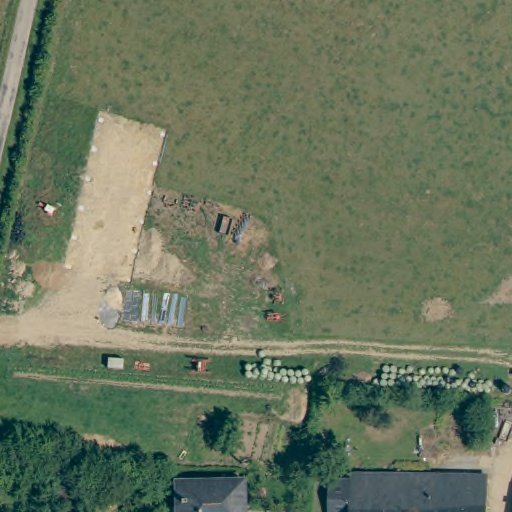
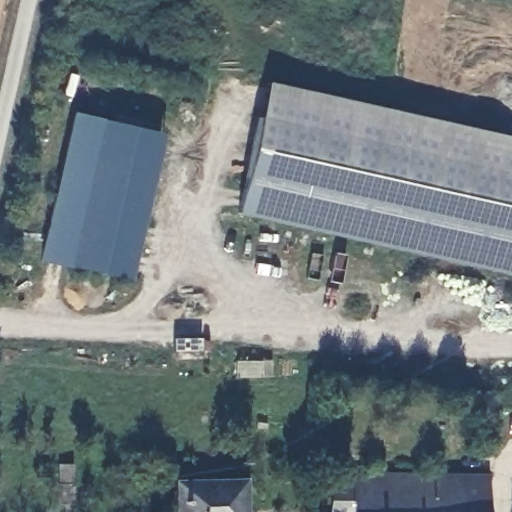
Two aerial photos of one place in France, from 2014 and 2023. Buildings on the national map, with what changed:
new [(512,138),(512,273),(232,210),(261,81),(512,138)]
new [(98,121),(157,133),(124,279),(65,266),(98,121)]
unchanged [(335,511),(336,476),(358,478),(358,471),(468,472),(491,472),(493,472),(493,497),(493,512),(356,512),(335,511)]
unchanged [(249,512),(181,512),(180,480),(249,478),(249,512)]

